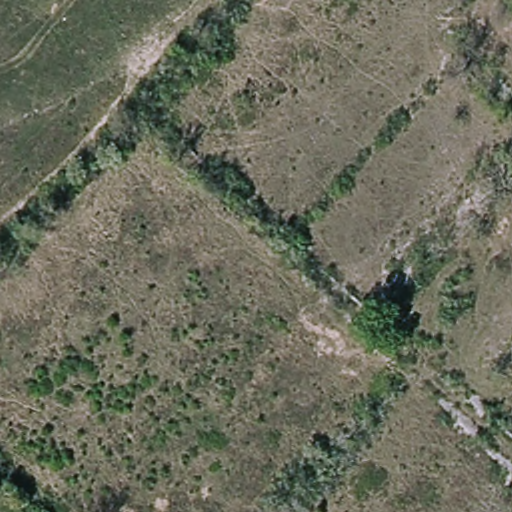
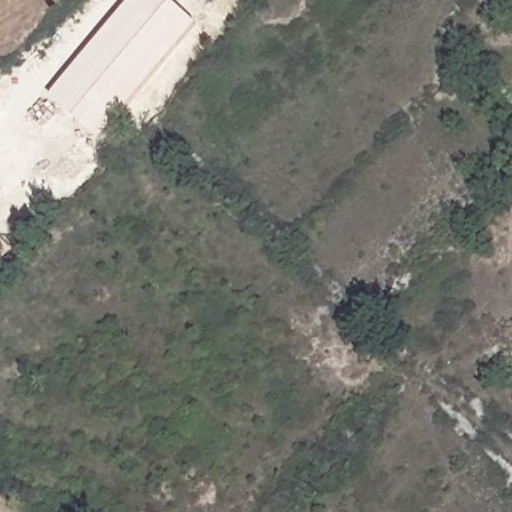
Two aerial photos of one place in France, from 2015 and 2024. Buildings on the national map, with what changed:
new [(98,139),(51,97),(134,0),(168,0),(196,25),(98,139)]

